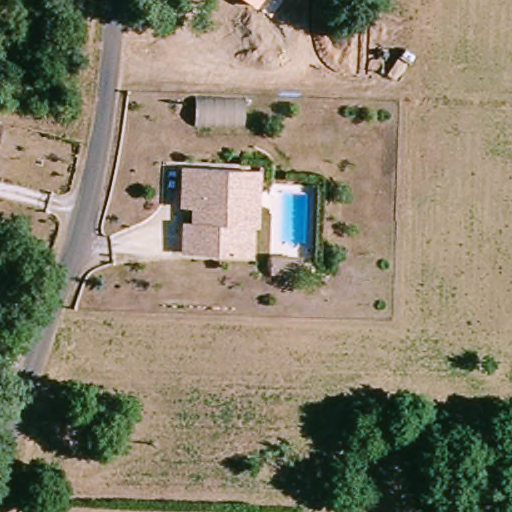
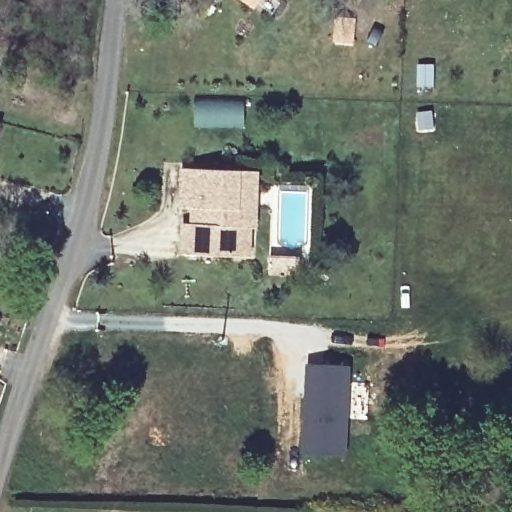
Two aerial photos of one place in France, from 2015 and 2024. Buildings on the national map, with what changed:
unchanged [(244,0),(263,0),(256,10),(244,0)]
unchanged [(196,124),(197,97),(245,99),(243,125),(196,124)]
unchanged [(0,137),(0,122),(3,122),(0,137)]
unchanged [(184,258),(185,228),(207,229),(207,212),(183,212),(185,173),(242,176),(260,176),(258,231),(253,231),(252,262),(184,258)]
new [(307,361),(349,362),(344,452),(302,451),(307,361)]

